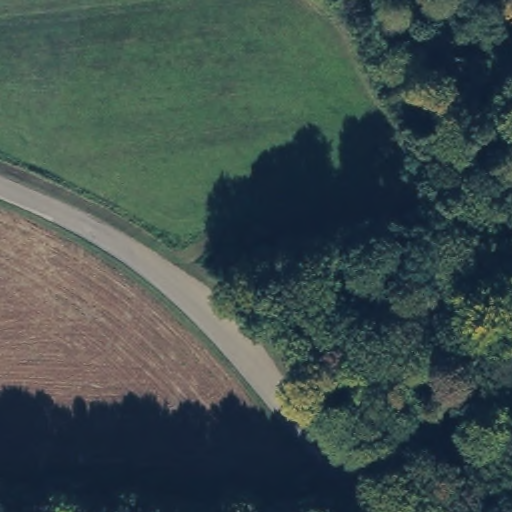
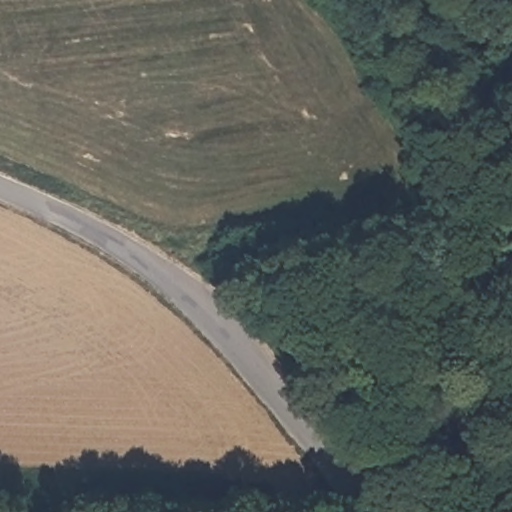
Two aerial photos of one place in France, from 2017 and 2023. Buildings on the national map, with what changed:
[]

